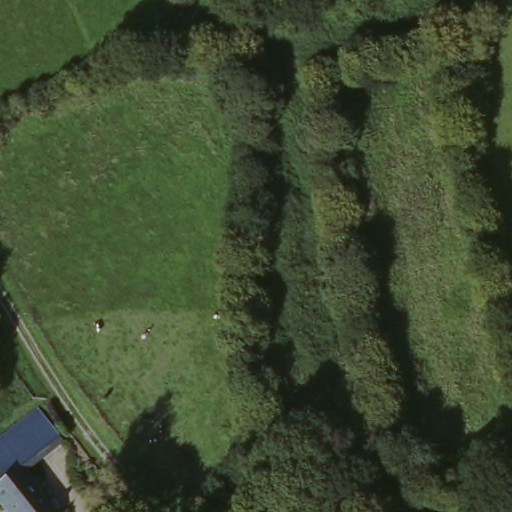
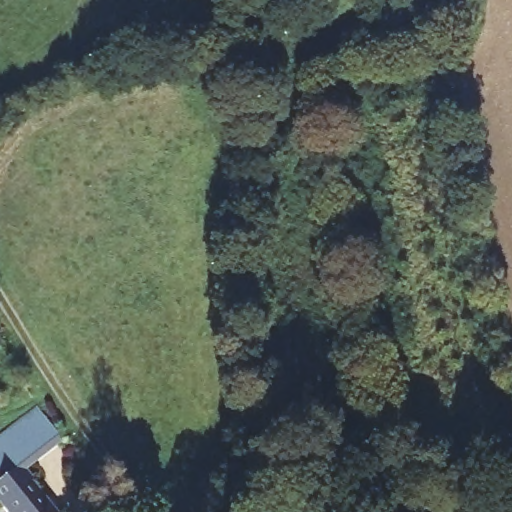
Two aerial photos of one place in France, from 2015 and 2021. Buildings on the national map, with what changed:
unchanged [(47,512),(0,512),(0,447),(36,417),(57,442),(23,470),(33,484),(29,488),(47,512)]

